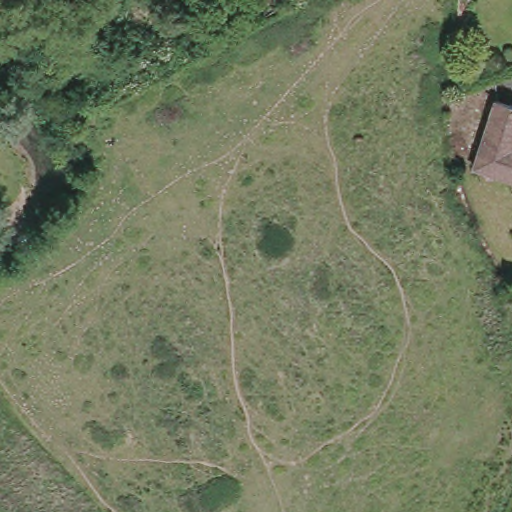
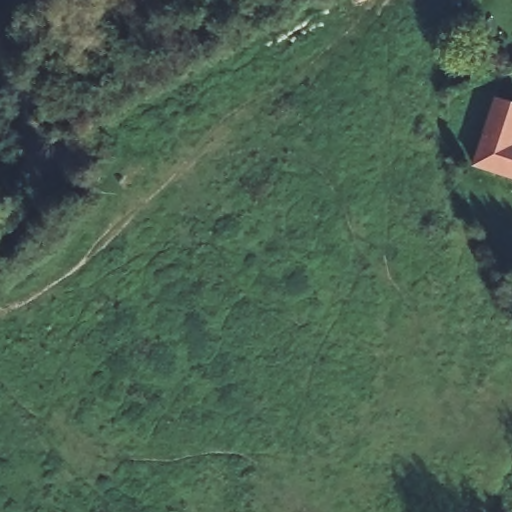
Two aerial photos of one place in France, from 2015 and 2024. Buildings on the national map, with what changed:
unchanged [(512,102),(512,175),(476,166),(492,99),(512,102)]

